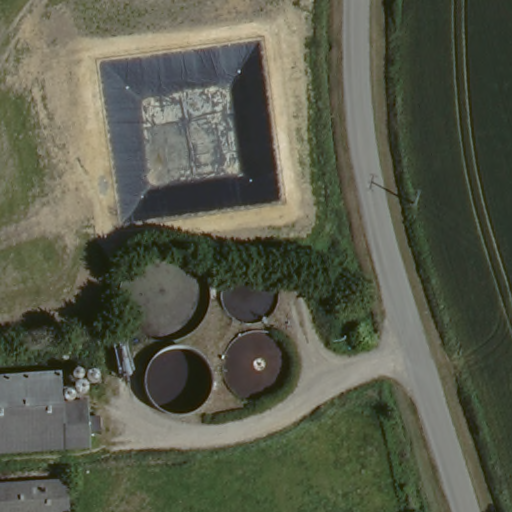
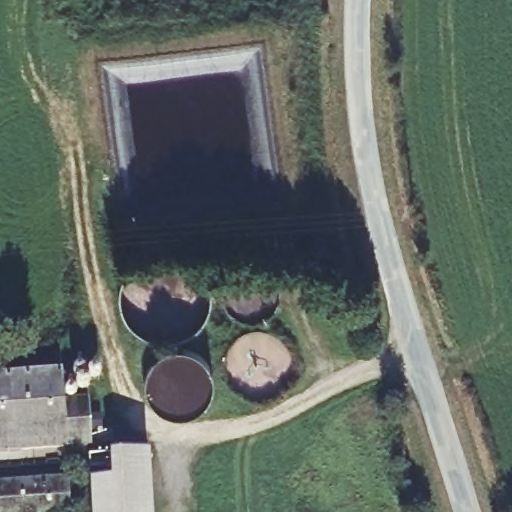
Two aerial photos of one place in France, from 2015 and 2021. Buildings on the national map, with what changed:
unchanged [(81,376),(86,444),(0,450),(0,382),(81,376)]
new [(89,485),(88,461),(108,459),(147,455),(151,512),(91,512),(89,485)]
unchanged [(62,486),(64,512),(0,512),(0,491),(62,486)]

